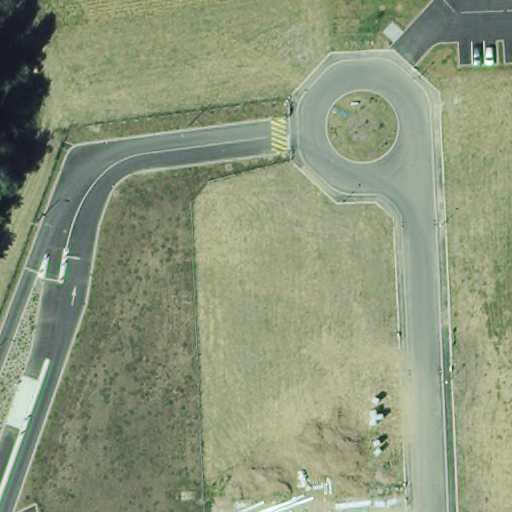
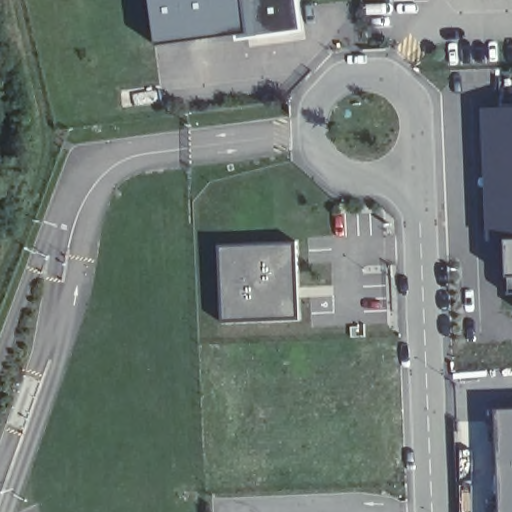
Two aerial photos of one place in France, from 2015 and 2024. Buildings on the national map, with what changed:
new [(247,32),(236,34),(156,45),(150,0),(244,0),(247,32)]
new [(302,32),(237,41),(236,34),(247,32),(244,0),(299,0),(302,32)]
unchanged [(512,292),(505,107),(512,107),(512,292)]
new [(223,322),(220,245),(296,242),(300,318),(223,322)]
new [(512,512),(501,512),(496,409),(512,408),(512,512)]

